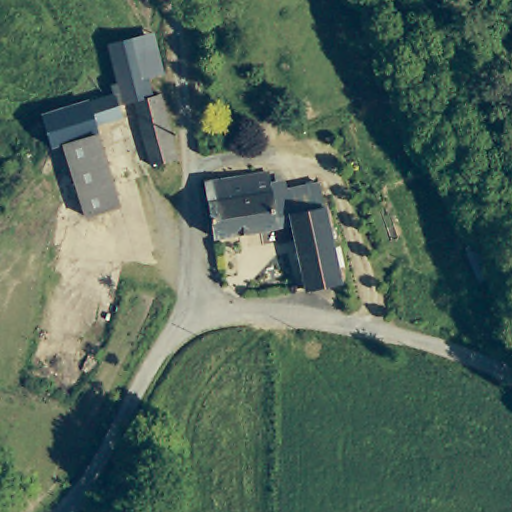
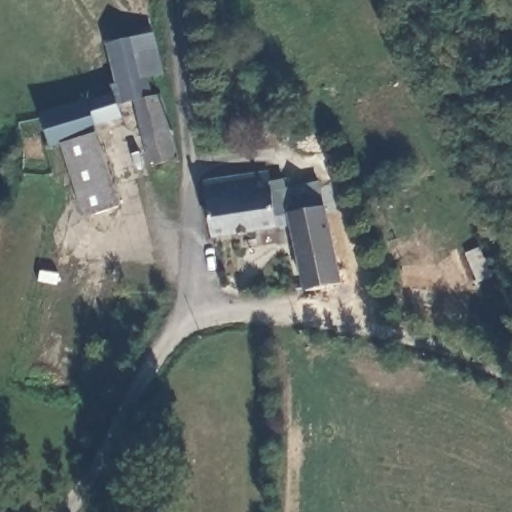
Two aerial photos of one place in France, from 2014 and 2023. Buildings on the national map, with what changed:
unchanged [(138,99),(122,103),(117,89),(115,79),(120,76),(111,41),(142,35),(157,31),(167,71),(152,75),(156,94),(138,99)]
unchanged [(54,143),(45,112),(117,89),(122,103),(125,114),(98,122),(100,129),(65,139),(54,143)]
unchanged [(181,157),(155,165),(138,99),(156,94),(162,93),(181,157)]
unchanged [(122,203),(87,215),(65,139),(100,129),(122,203)]
unchanged [(272,190),(276,215),(277,223),(217,233),(207,179),(268,170),(272,190)]
unchanged [(272,190),(317,183),(320,183),(322,192),(323,205),(292,212),(276,215),(272,190)]
unchanged [(345,280),(309,287),(292,212),(323,205),(327,204),(345,280)]

